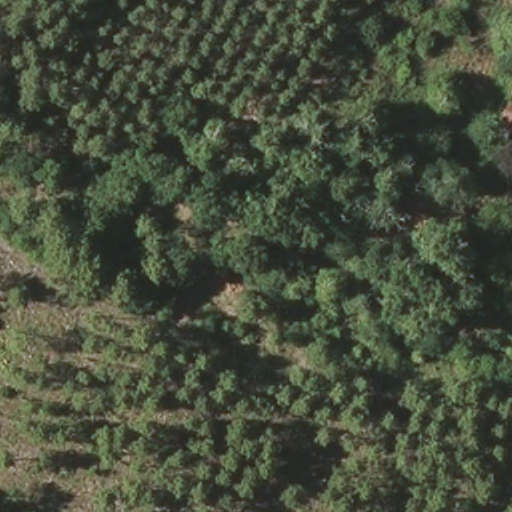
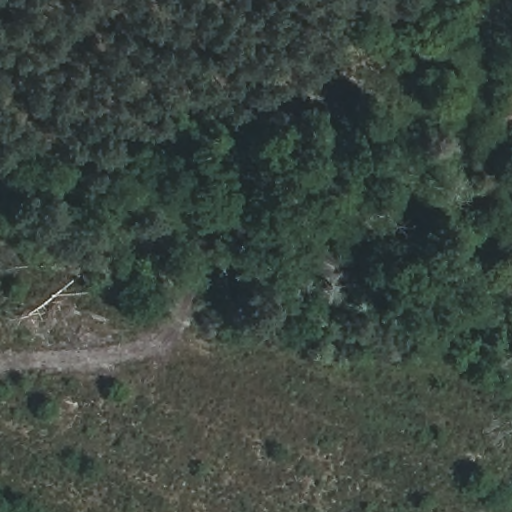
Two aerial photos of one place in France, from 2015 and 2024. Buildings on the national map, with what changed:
unchanged [(508,93),(512,84),(512,94),(508,93)]
unchanged [(512,102),(512,130),(497,126),(505,99),(512,102)]

